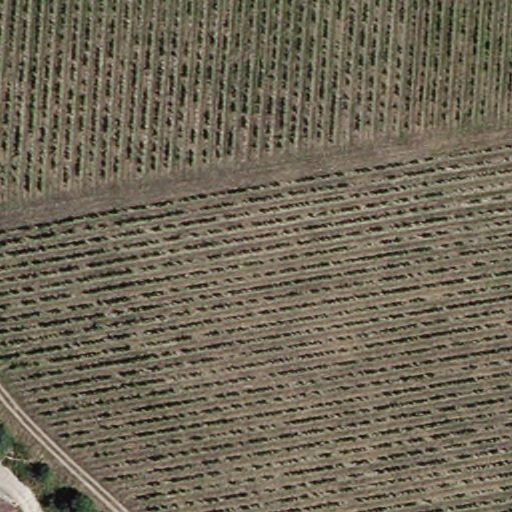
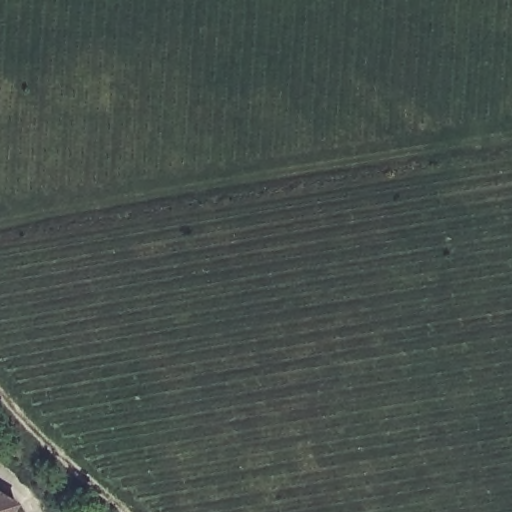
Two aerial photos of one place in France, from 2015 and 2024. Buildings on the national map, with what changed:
unchanged [(0,498),(6,501),(0,512),(0,498)]

